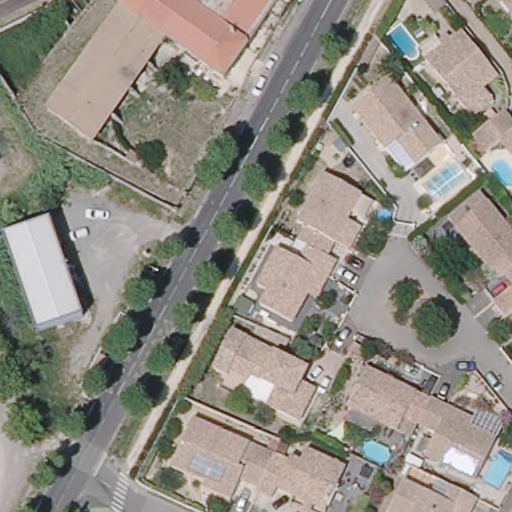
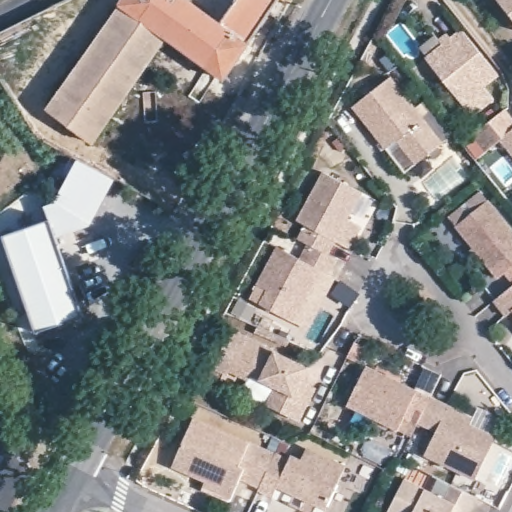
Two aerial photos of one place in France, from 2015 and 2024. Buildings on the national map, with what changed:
unchanged [(290,1),(280,19),(270,12),(225,79),(165,37),(95,141),(47,110),(125,0),(290,0),(290,1)]
new [(65,0),(97,0),(71,31),(54,5),(65,0)]
unchanged [(492,0),(512,0),(512,25),(492,0)]
unchanged [(491,71),(475,85),(486,97),(465,114),(418,58),(454,28),(491,71)]
unchanged [(442,146),(430,158),(402,125),(390,134),(365,102),(390,82),(442,146)]
unchanged [(504,152),(493,138),(480,149),(467,134),(497,108),(510,124),(512,122),(512,162),(504,152)]
new [(60,239),(52,215),(48,216),(45,207),(58,202),(77,161),(116,181),(92,227),(60,239)]
new [(0,167),(0,165),(1,166),(0,167)]
unchanged [(347,246),(335,240),(328,256),(307,246),(297,241),(305,226),(297,222),(320,175),(360,192),(347,216),(359,222),(347,246)]
unchanged [(511,263),(492,277),(451,226),(482,201),(512,238),(512,264),(511,263)]
unchanged [(3,234),(52,215),(85,314),(37,330),(3,234)]
unchanged [(310,293),(295,324),(262,307),(270,291),(257,285),(275,250),(298,262),(307,246),(328,256),(336,260),(329,276),(318,298),(310,293)]
unchanged [(500,291),(512,281),(512,307),(500,291)]
unchanged [(300,418),(268,403),(275,385),(252,374),(249,380),(227,370),(244,335),(273,350),(277,344),(298,354),(308,359),(300,377),(316,385),(300,418)]
unchanged [(383,407),(377,420),(345,403),(365,365),(428,398),(418,420),(417,423),(383,407)]
unchanged [(471,416),(467,425),(492,437),(475,474),(425,451),(435,427),(418,420),(428,398),(430,396),(443,403),(471,416)]
unchanged [(202,485),(203,481),(170,464),(192,416),(273,455),(258,487),(240,478),(234,488),(229,498),(202,485)]
unchanged [(272,495),(267,503),(253,497),(258,487),(273,455),(287,461),(291,453),(303,458),(308,447),(345,465),(323,512),(285,512),(290,504),(272,495)]
unchanged [(445,500),(452,485),(478,497),(472,512),(390,512),(405,481),(445,500)]

